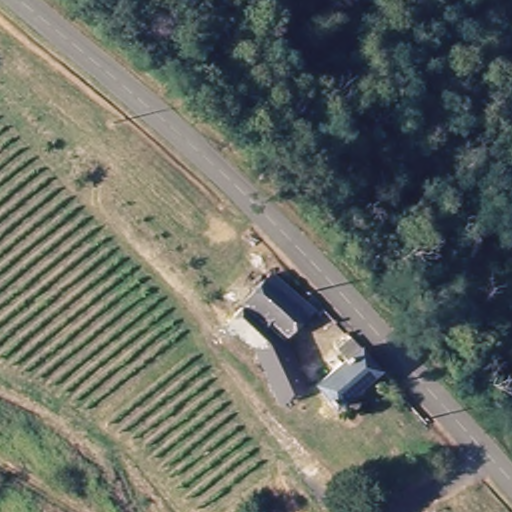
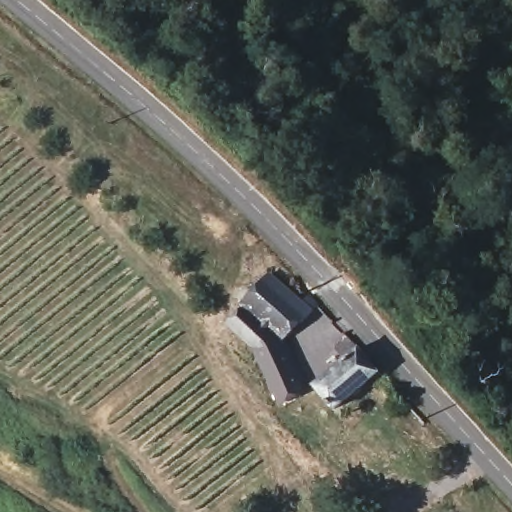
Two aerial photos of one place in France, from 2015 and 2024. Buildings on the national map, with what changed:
unchanged [(273,273),(320,316),(292,346),(306,391),(282,401),(268,360),(230,322),(273,273)]
unchanged [(357,356),(347,344),(353,339),(385,375),(343,406),(325,380),(357,356)]

